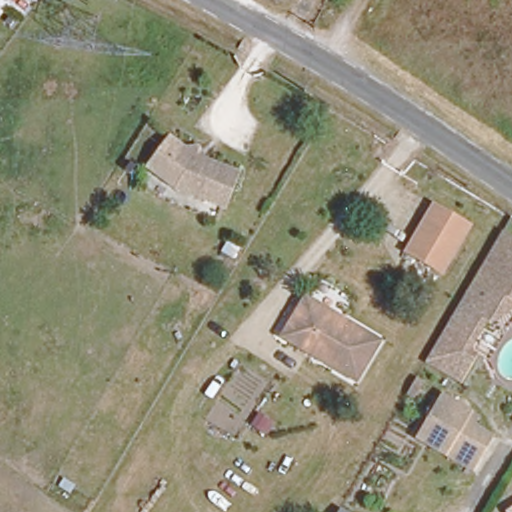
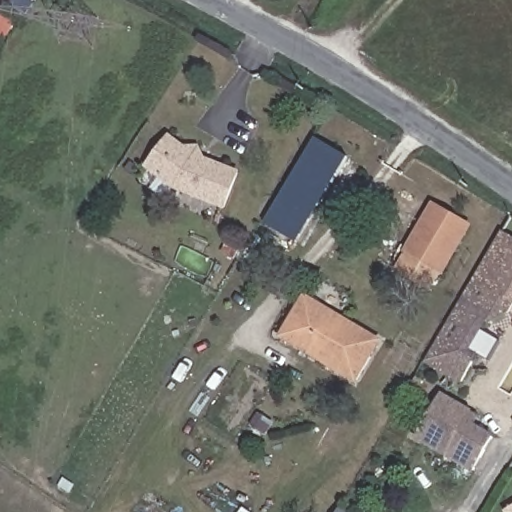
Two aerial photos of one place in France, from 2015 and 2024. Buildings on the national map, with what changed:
unchanged [(196,155),(239,174),(224,209),(177,188),(147,166),(170,136),(196,155)]
new [(316,138),(349,156),(298,243),(265,225),(316,138)]
unchanged [(473,227),(441,279),(402,256),(432,203),(473,227)]
unchanged [(500,234),(512,241),(512,309),(507,318),(501,314),(491,308),(486,317),(477,312),(437,377),(422,368),(499,234),(500,234)]
unchanged [(360,386),(290,345),(313,304),(348,324),(367,336),(383,345),(360,386)]
unchanged [(490,330),(485,327),(472,353),(481,359),(463,390),(437,377),(477,312),(486,317),(491,308),(501,314),(490,330)]
unchanged [(442,394),(484,418),(479,429),(495,437),(472,473),(414,441),(442,394)]
unchanged [(346,512),(337,512),(340,509),(346,512)]

